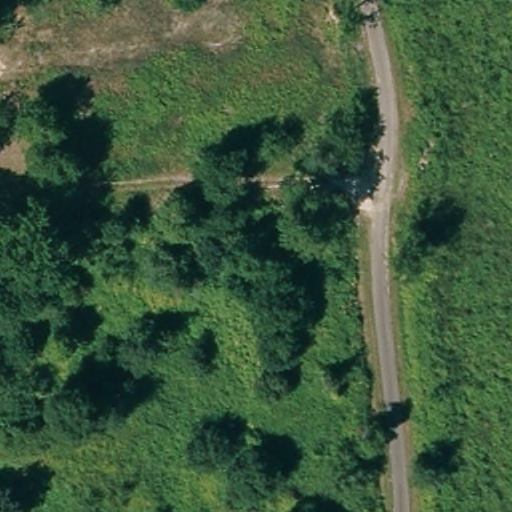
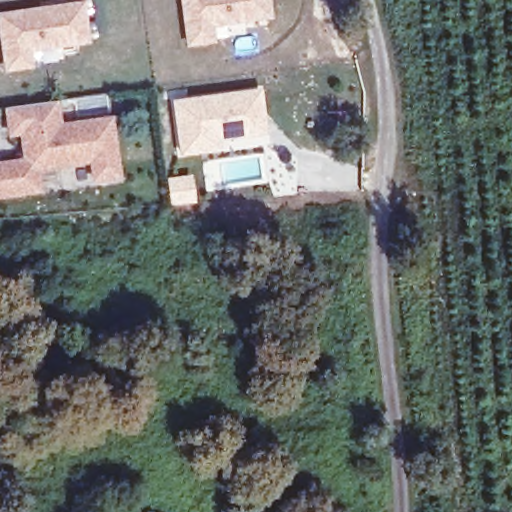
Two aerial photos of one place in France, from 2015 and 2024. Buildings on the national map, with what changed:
new [(90,44),(30,51),(32,68),(4,71),(0,48),(0,12),(83,0),(90,44)]
new [(213,27),(215,43),(185,46),(179,0),(270,0),(272,19),(213,27)]
new [(220,141),(220,149),(179,155),(171,100),(261,88),(267,131),(220,141)]
new [(90,180),(88,163),(38,170),(41,192),(0,198),(0,160),(21,157),(17,135),(8,137),(3,109),(57,100),(61,124),(111,116),(121,177),(90,180)]

